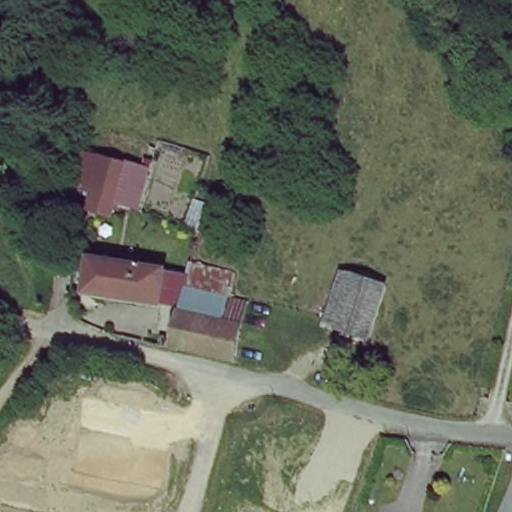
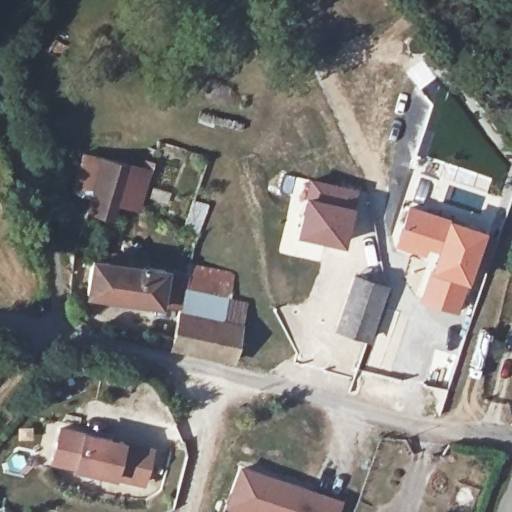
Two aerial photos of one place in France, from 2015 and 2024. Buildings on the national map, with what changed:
unchanged [(138,206),(97,197),(75,192),(84,155),(105,160),(145,170),(138,206)]
new [(292,234),(304,192),(307,178),(357,189),(353,205),(342,246),(292,234)]
new [(191,197),(208,203),(196,235),(181,230),(191,197)]
new [(407,202),(485,227),(456,314),(417,301),(430,260),(393,247),(407,202)]
unchanged [(153,302),(97,296),(101,260),(158,267),(153,302)]
unchanged [(247,304),(232,362),(208,357),(178,350),(186,270),(204,271),(231,273),(228,299),(247,304)]
unchanged [(380,285),(373,337),(337,330),(326,328),(338,275),(352,278),(380,285)]
unchanged [(85,433),(153,449),(145,483),(77,468),(85,433)]
new [(246,512),(244,511),(228,506),(232,495),(240,468),(339,500),(336,512),(246,512)]

